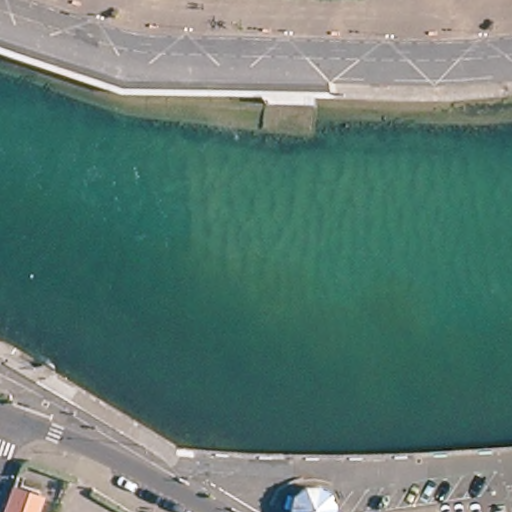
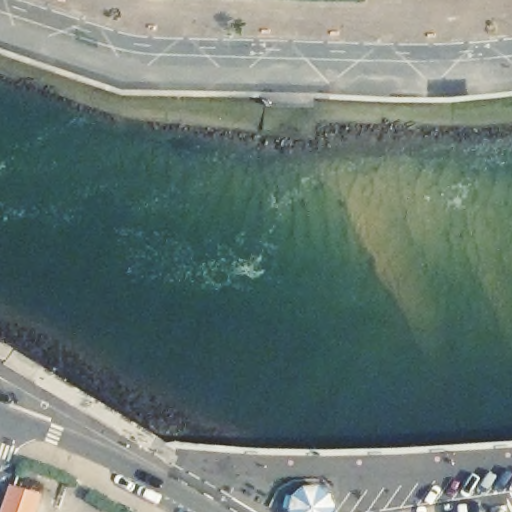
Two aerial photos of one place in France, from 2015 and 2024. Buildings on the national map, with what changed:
unchanged [(38,498),(33,512),(5,512),(12,490),(38,498)]

